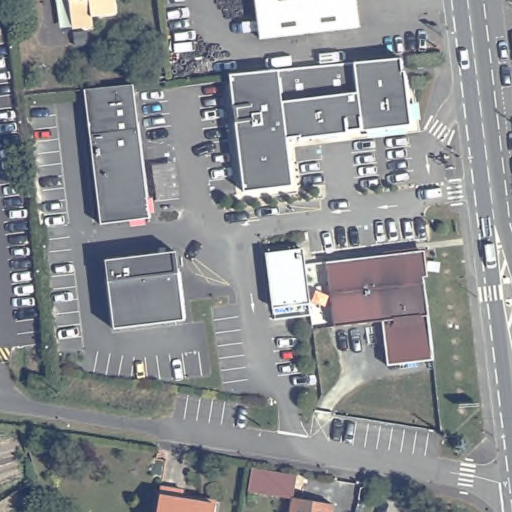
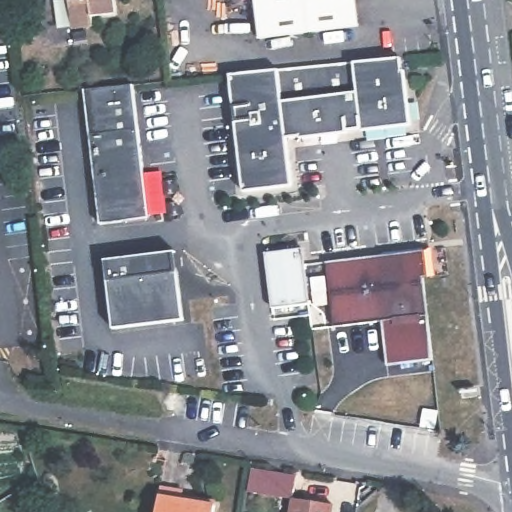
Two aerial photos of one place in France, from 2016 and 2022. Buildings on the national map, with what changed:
unchanged [(94,16),(95,25),(73,27),(70,0),(115,0),(116,14),(94,16)]
unchanged [(265,39),(261,0),(363,0),(366,27),(265,39)]
unchanged [(401,62),(403,76),(405,76),(409,130),(358,135),(358,133),(346,134),(346,136),(296,141),(296,139),(286,140),(289,190),(240,194),(229,79),(401,62)]
unchanged [(133,84),(147,217),(98,223),(83,89),(133,84)]
unchanged [(264,252),(302,248),(304,262),(309,302),(270,307),(264,252)]
unchanged [(170,252),(172,272),(174,271),(180,320),(109,327),(104,278),(106,278),(104,258),(170,252)]
unchanged [(418,259),(419,264),(424,313),(331,323),(324,270),(382,263),(418,259)]
unchanged [(424,313),(431,370),(385,375),(379,331),(332,336),(331,323),(424,313)]
unchanged [(254,470),(300,477),(297,498),(251,492),(252,490),(254,470)]
unchanged [(156,497),(212,507),(211,512),(154,512),(156,497)]
unchanged [(297,498),(337,505),(336,512),(295,512),(297,498)]

